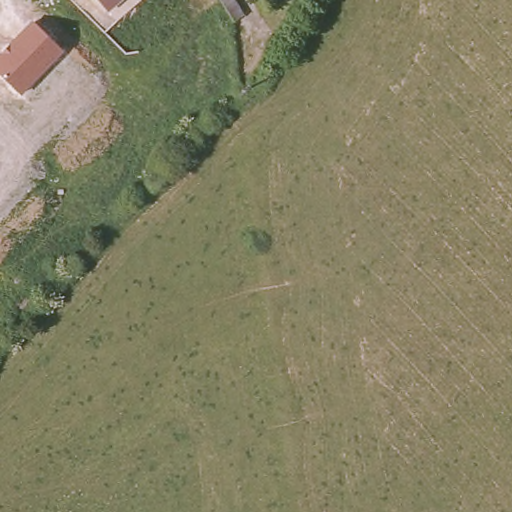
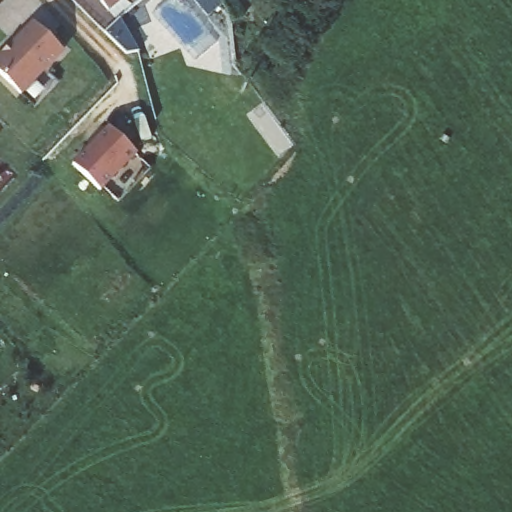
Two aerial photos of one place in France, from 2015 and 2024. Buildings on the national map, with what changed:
unchanged [(110,11),(99,0),(123,0),(110,11)]
unchanged [(223,0),(234,0),(244,15),(235,20),(229,10),(223,0)]
unchanged [(18,95),(0,76),(0,52),(32,21),(63,51),(18,95)]
new [(108,125),(137,154),(101,191),(72,163),(108,125)]

